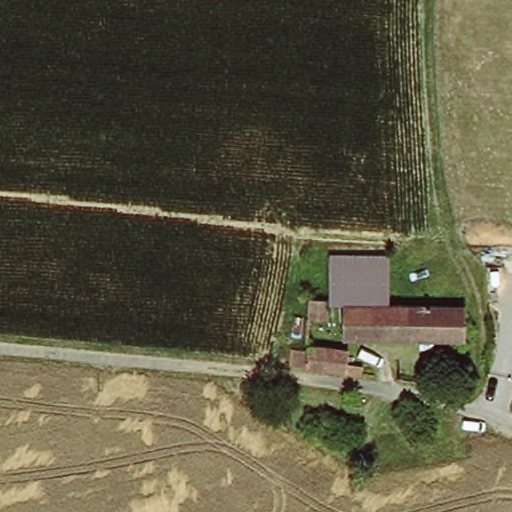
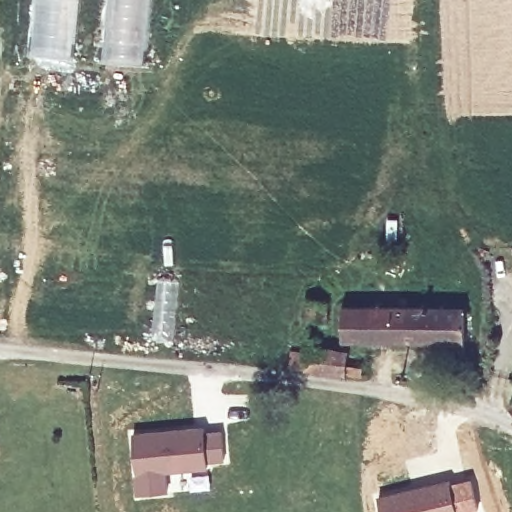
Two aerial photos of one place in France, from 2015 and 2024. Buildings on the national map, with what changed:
new [(150,0),(144,66),(100,62),(105,0),(150,0)]
demolished [(337,308),(326,307),(327,254),(388,256),(389,309),(337,308)]
unchanged [(335,330),(336,311),(337,308),(455,310),(455,338),(335,334),(335,330)]
unchanged [(350,352),(347,378),(302,372),(305,345),(350,352)]
new [(205,425),(205,430),(222,428),(225,462),(207,464),(207,470),(167,473),(168,492),(136,495),(132,432),(205,425)]
new [(452,481),(472,477),(480,512),(380,512),(376,496),(450,477),(452,481)]

